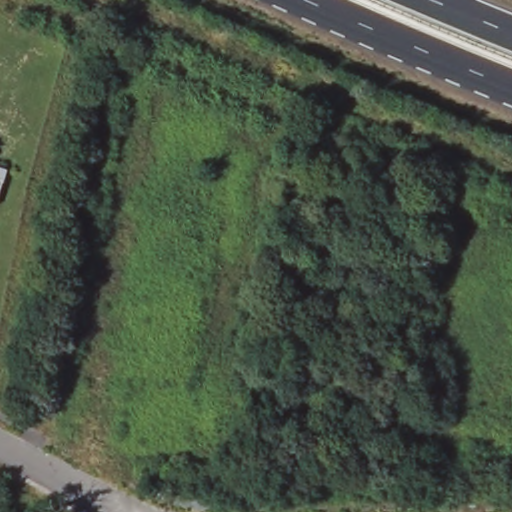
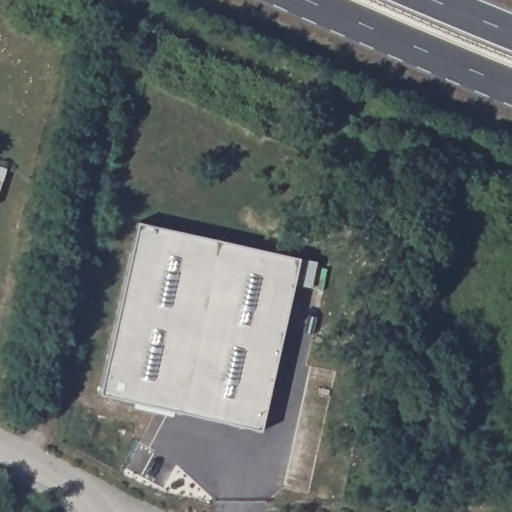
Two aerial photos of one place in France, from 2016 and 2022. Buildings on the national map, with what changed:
unchanged [(138,37),(153,41),(148,61),(133,58),(138,37)]
new [(297,258),(261,430),(100,393),(137,222),(297,258)]

